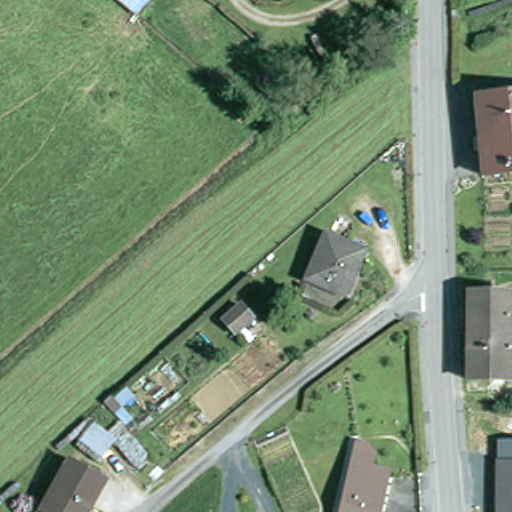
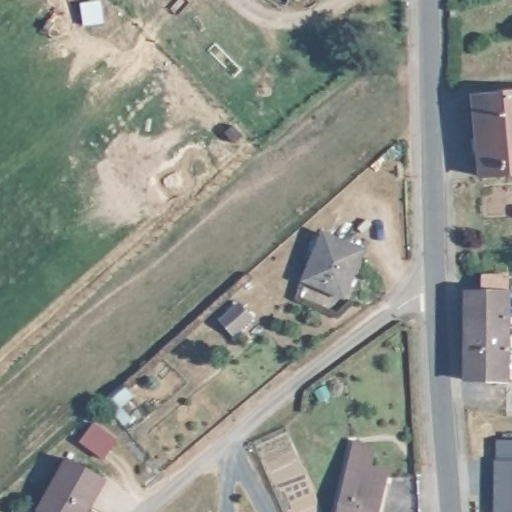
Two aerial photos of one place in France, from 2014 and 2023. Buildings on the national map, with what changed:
unchanged [(475,136),(482,136),(480,94),(512,93),(512,174),(485,175),(484,150),(475,150),(475,136)]
unchanged [(305,278),(324,234),(363,250),(345,295),(305,278)]
unchanged [(505,387),(482,386),(482,396),(465,395),(465,384),(463,384),(467,282),(492,287),(492,299),(512,300),(512,340),(506,340),(505,387)]
unchanged [(230,339),(217,324),(233,310),(246,324),(230,339)]
unchanged [(512,442),(512,512),(494,512),(494,458),(497,459),(497,442),(512,442)]
unchanged [(381,512),(342,512),(350,479),(360,447),(372,450),(377,459),(371,484),(387,489),(381,512)]
unchanged [(44,511),(74,458),(109,479),(89,512),(45,512),(44,511)]

